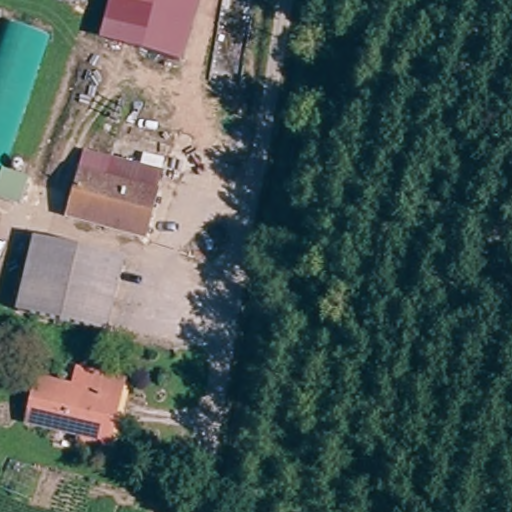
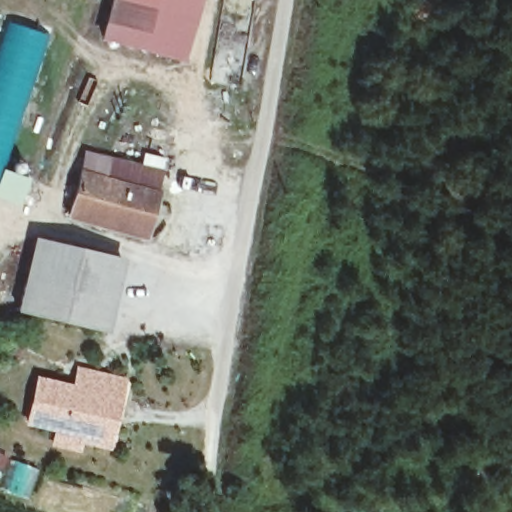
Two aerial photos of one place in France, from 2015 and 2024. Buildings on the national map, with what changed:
unchanged [(180,53),(155,46),(103,32),(112,0),(195,0),(180,53)]
unchanged [(0,28),(3,21),(49,37),(5,171),(10,172),(14,162),(26,166),(23,177),(16,202),(0,198),(0,28)]
unchanged [(145,236),(70,216),(88,150),(139,163),(142,150),(168,156),(145,236)]
unchanged [(110,327),(18,308),(26,281),(36,240),(125,258),(114,304),(110,327)]
unchanged [(82,441),(84,436),(33,422),(43,382),(93,394),(96,376),(128,384),(111,448),(82,441)]

